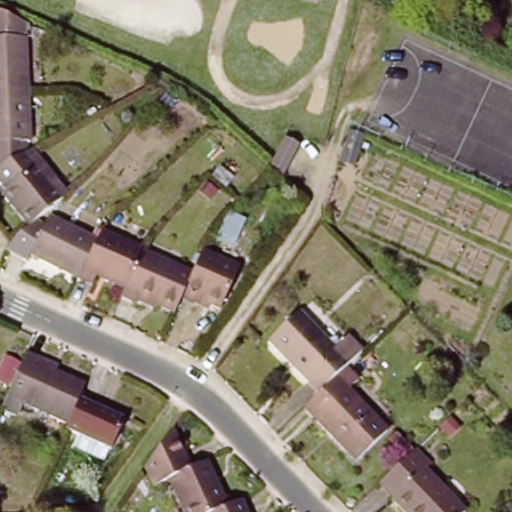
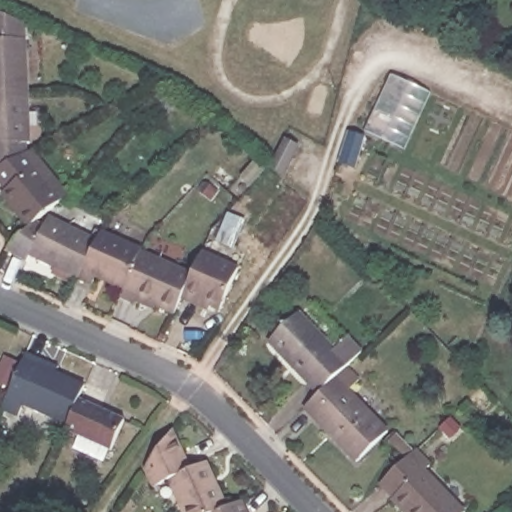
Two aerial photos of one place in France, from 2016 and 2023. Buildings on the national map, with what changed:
unchanged [(28,92),(0,93),(0,6),(25,18),(28,92)]
new [(391,75),(430,92),(403,149),(366,132),(391,75)]
unchanged [(31,145),(26,146),(27,152),(0,167),(0,93),(28,92),(31,145)]
new [(350,133),(365,137),(355,170),(340,166),(350,133)]
unchanged [(2,193),(6,190),(0,182),(0,167),(27,152),(37,146),(73,189),(29,226),(2,193)]
unchanged [(124,287),(96,275),(92,283),(77,276),(76,276),(30,255),(26,262),(6,253),(12,239),(29,226),(40,230),(45,217),(93,238),(96,239),(100,232),(140,251),(124,287)]
unchanged [(135,299),(135,301),(120,296),(124,287),(140,251),(141,248),(193,272),(183,296),(176,311),(156,303),(155,307),(135,299)]
unchanged [(241,267),(222,309),(201,299),(200,303),(183,296),(193,272),(202,251),(241,267)]
unchanged [(341,369),(315,394),(265,341),(295,312),(330,348),(342,339),(356,354),(341,369)]
unchanged [(68,424),(26,404),(21,413),(18,412),(3,406),(11,388),(0,383),(0,375),(10,354),(23,361),(25,357),(27,351),(41,358),(60,366),(56,372),(85,385),(79,400),(68,424)]
unchanged [(315,394),(341,369),(356,384),(348,392),(384,430),(352,459),(302,407),(315,394)]
unchanged [(68,424),(79,400),(125,421),(110,451),(65,430),(68,424)]
unchanged [(195,463),(210,457),(231,503),(212,512),(192,512),(175,475),(160,482),(151,465),(178,426),(195,463)]
unchanged [(422,469),(417,475),(452,512),(394,512),(386,504),(387,502),(374,487),(408,455),(422,469)]
unchanged [(253,512),(212,512),(231,503),(246,496),(253,512)]

